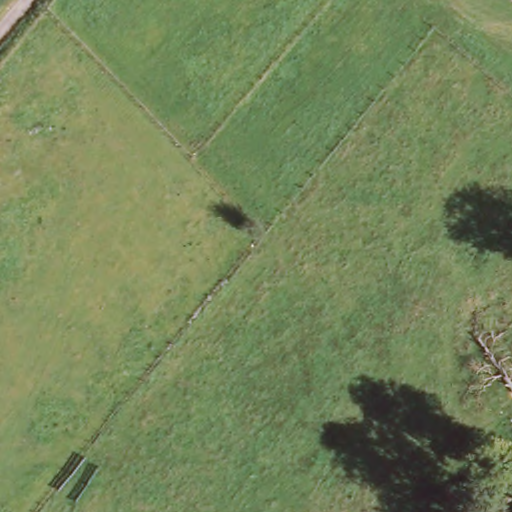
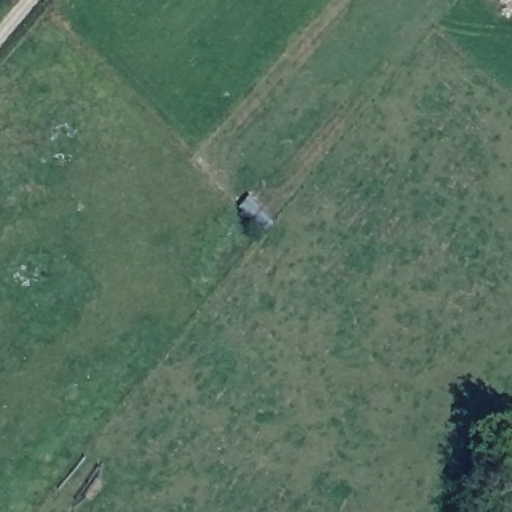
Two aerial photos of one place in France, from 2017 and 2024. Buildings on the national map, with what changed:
[]

